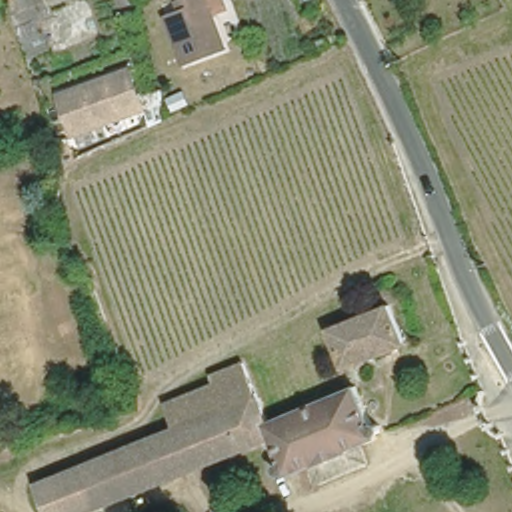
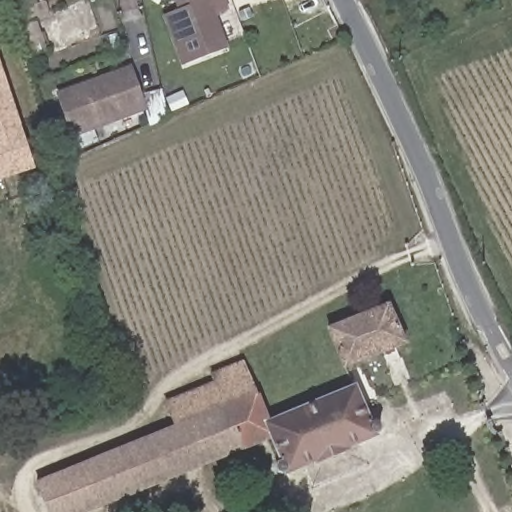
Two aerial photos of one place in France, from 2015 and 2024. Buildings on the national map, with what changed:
unchanged [(40,0),(46,15),(34,21),(39,35),(19,42),(8,0),(40,0)]
unchanged [(213,14),(226,49),(185,65),(165,15),(177,10),(173,0),(175,0),(222,0),(225,9),(213,14)]
unchanged [(227,0),(235,0),(228,3),(227,0)]
unchanged [(341,35),(331,40),(327,30),(337,25),(341,35)]
new [(36,171),(0,182),(0,63),(36,171)]
unchanged [(120,71),(135,109),(73,134),(58,97),(120,71)]
unchanged [(159,93),(165,117),(147,125),(140,97),(159,93)]
unchanged [(406,342),(343,367),(335,350),(326,330),(390,305),(406,342)]
unchanged [(180,430),(170,405),(219,385),(216,376),(246,364),(272,422),(353,385),(372,423),(373,423),(374,422),(375,422),(376,422),(377,423),(378,423),(379,424),(380,425),(381,425),(381,426),(381,427),(382,428),(382,429),(382,430),(381,431),(381,432),(381,433),(380,433),(380,434),(379,434),(379,435),(380,437),(351,449),(352,451),(321,465),(320,463),(291,476),(290,474),(289,475),(288,475),(287,475),(286,475),(285,474),(284,473),(283,473),(283,472),(282,472),(282,471),(282,470),(282,469),(282,468),(282,467),(282,466),(283,465),(284,465),(284,464),(285,463),(275,439),(103,506),(89,512),(54,512),(43,485),(180,430)]

